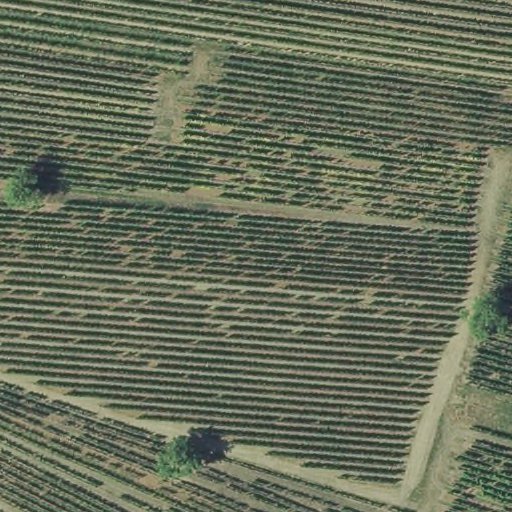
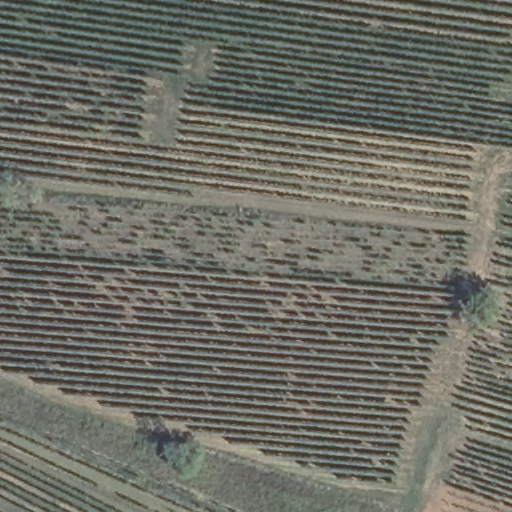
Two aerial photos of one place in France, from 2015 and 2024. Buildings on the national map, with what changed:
[]

